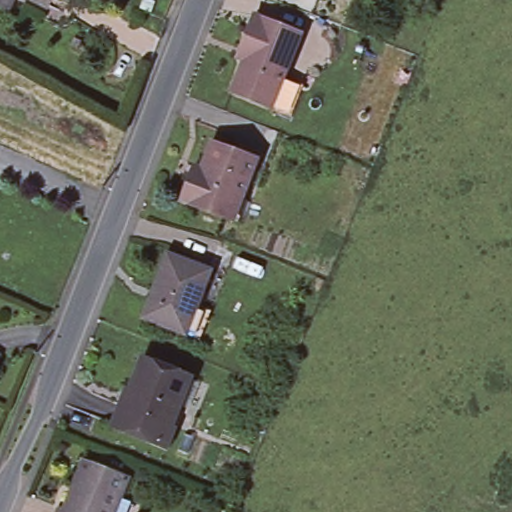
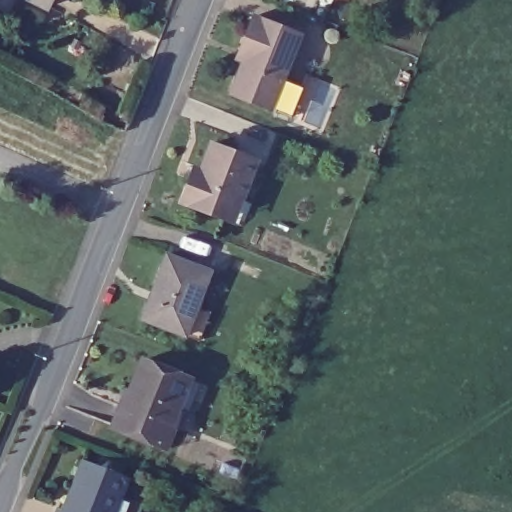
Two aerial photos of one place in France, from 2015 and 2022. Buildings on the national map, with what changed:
unchanged [(46,0),(51,0),(50,2),(46,0)]
unchanged [(288,115),(268,106),(229,90),(241,59),(235,56),(238,46),(252,12),(298,32),(281,76),(301,84),(288,115)]
unchanged [(241,225),(230,221),(185,204),(193,180),(197,170),(205,172),(214,146),(259,162),(244,202),(249,204),(241,225)]
unchanged [(198,337),(185,332),(140,316),(165,252),(209,269),(195,304),(208,310),(198,337)]
unchanged [(152,439),(110,423),(118,402),(123,404),(142,357),(189,375),(171,422),(175,423),(175,426),(168,445),(152,439)]
unchanged [(56,506),(61,507),(80,457),(127,476),(113,512),(54,512),(56,506)]

